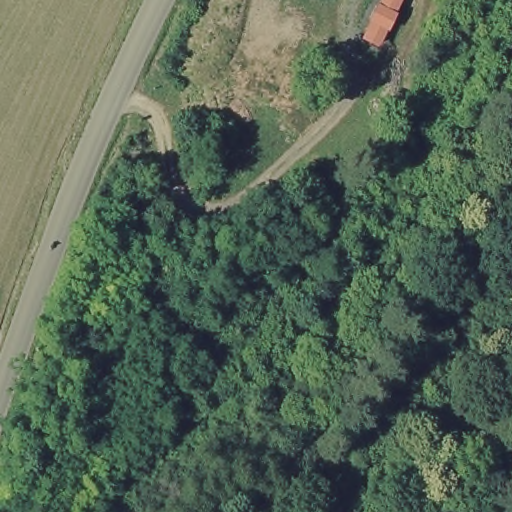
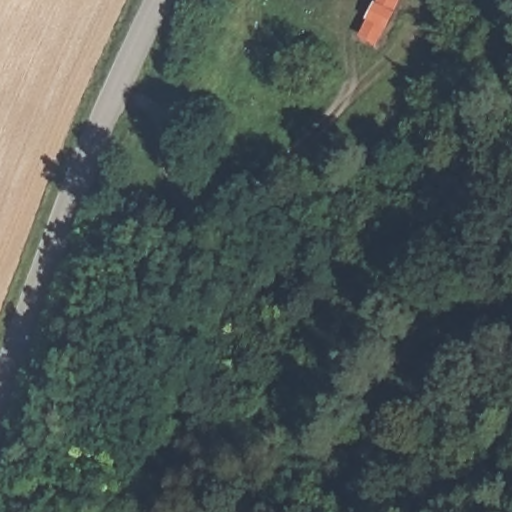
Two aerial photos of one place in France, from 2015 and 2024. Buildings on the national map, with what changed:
unchanged [(359,33),(367,20),(363,17),(374,0),(401,0),(379,43),(359,33)]

